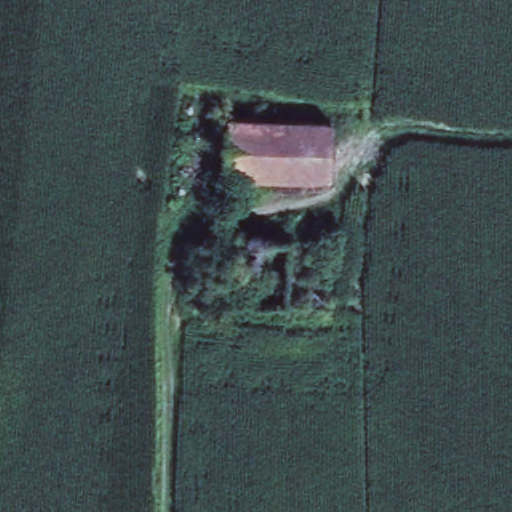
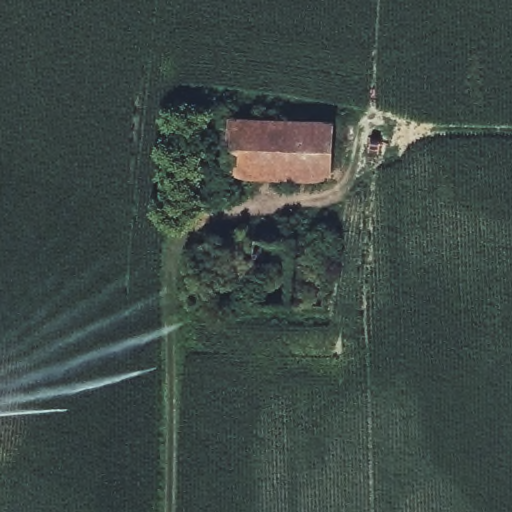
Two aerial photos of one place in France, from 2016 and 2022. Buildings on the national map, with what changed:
unchanged [(272,114),(333,116),(330,177),(227,173),(229,112),(272,114)]

